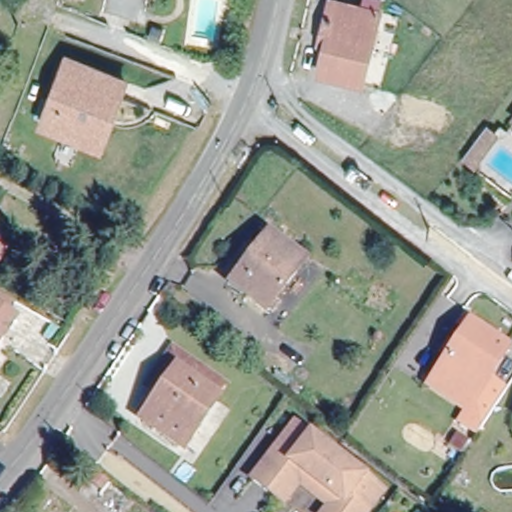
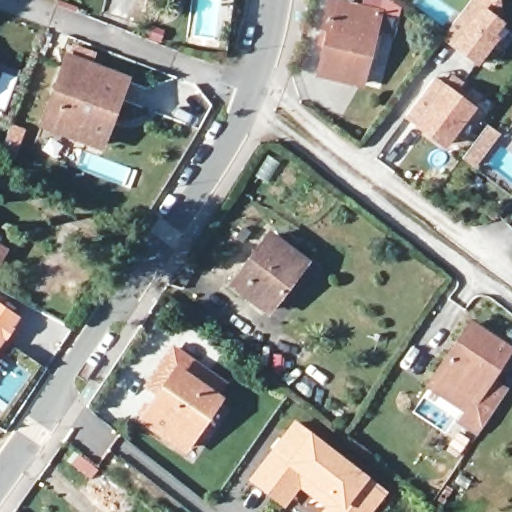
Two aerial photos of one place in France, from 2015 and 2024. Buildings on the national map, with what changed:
unchanged [(359,83),(318,73),(326,44),(320,42),(330,0),(377,13),(359,83)]
new [(495,36),(499,39),(478,66),(452,45),(442,38),(470,0),(500,0),(503,24),(495,36)]
unchanged [(123,79),(98,145),(42,124),(67,58),(123,79)]
new [(445,84),(476,108),(445,150),(415,124),(405,116),(434,76),(445,84)]
demolished [(440,109),(433,134),(395,124),(402,99),(440,109)]
unchanged [(494,134),(472,164),(462,156),(480,131),(484,126),(494,134)]
unchanged [(269,235),(304,262),(266,310),(232,283),(269,235)]
unchanged [(15,300),(6,314),(16,320),(0,343),(0,291),(15,300)]
unchanged [(457,334),(452,331),(465,312),(512,343),(512,353),(496,377),(500,379),(472,420),(454,408),(467,388),(430,363),(444,343),(449,346),(457,334)]
unchanged [(176,364),(218,394),(183,444),(141,414),(176,364)]
unchanged [(388,489),(371,512),(339,512),(347,502),(294,461),(272,489),(256,476),(299,420),(388,489)]
unchanged [(294,461),(347,502),(339,512),(327,512),(333,504),(304,481),(288,501),(272,489),(294,461)]

